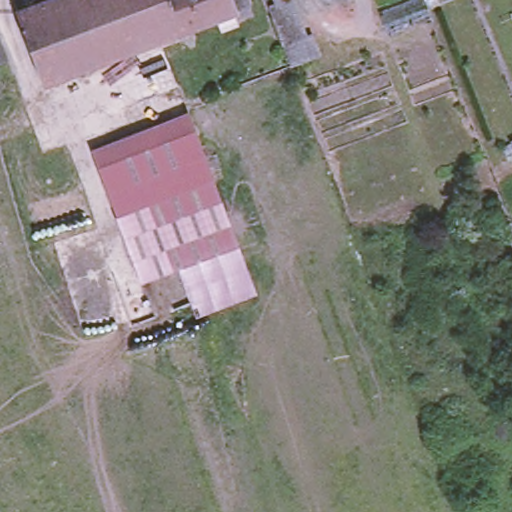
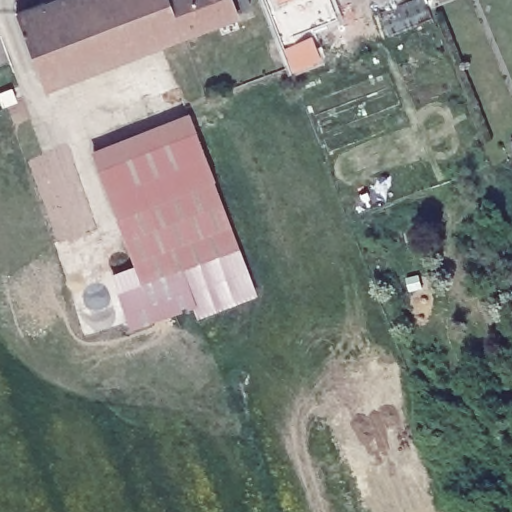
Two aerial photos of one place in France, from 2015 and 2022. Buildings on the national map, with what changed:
unchanged [(41,82),(15,10),(40,0),(95,0),(115,54),(41,82)]
unchanged [(180,30),(115,54),(95,0),(169,0),(180,30)]
unchanged [(249,4),(180,30),(169,0),(248,0),(249,4)]
unchanged [(315,39),(321,59),(293,70),(285,49),(315,39)]
unchanged [(178,268),(142,281),(96,148),(148,129),(190,113),(237,244),(238,246),(196,261),(178,268)]
unchanged [(196,261),(238,246),(256,296),(196,319),(178,268),(196,261)]
new [(191,306),(130,329),(110,273),(136,264),(142,281),(178,268),(191,306)]

